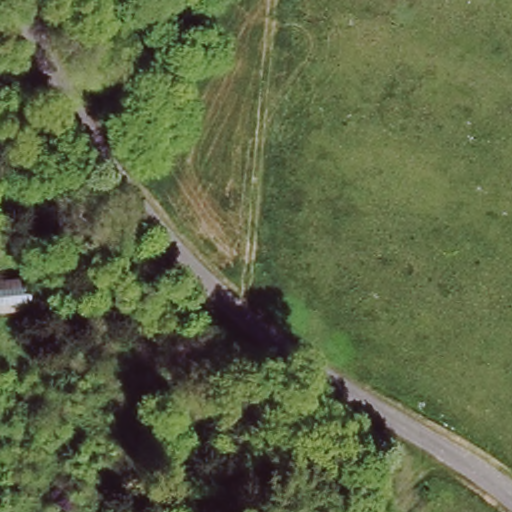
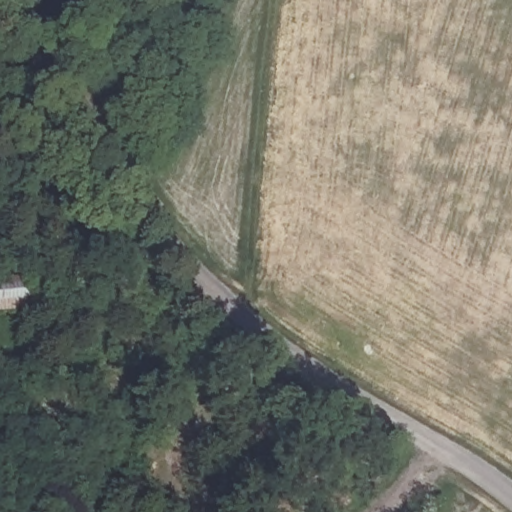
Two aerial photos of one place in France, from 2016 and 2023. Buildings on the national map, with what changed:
unchanged [(37,278),(40,312),(0,315),(0,281),(37,278)]

